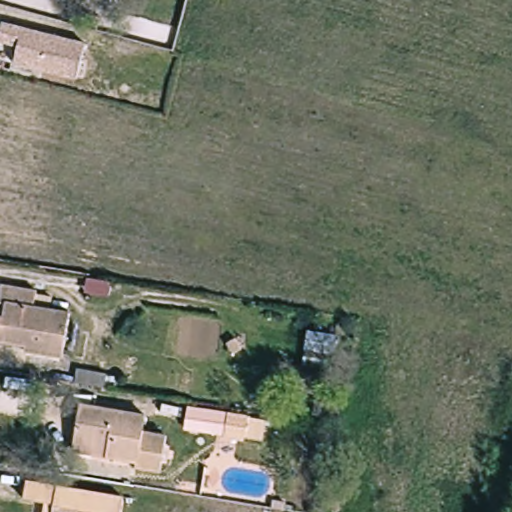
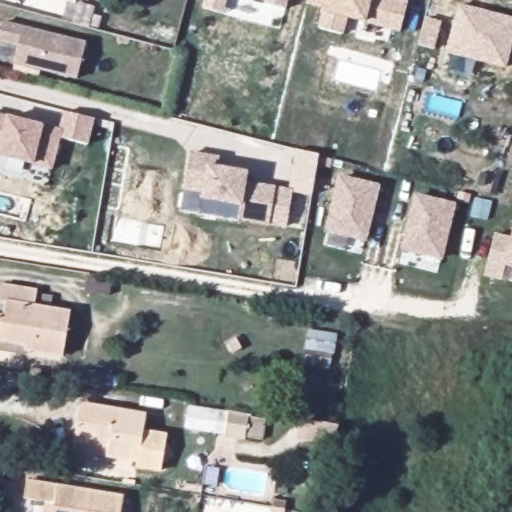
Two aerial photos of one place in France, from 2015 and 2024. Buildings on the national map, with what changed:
new [(222,14),(202,8),(205,0),(227,0),(222,14)]
new [(265,4),(266,0),(289,0),(287,9),(265,4)]
new [(365,23),(346,19),(343,34),(318,27),(322,13),(323,9),(306,4),(307,0),(402,0),(408,1),(400,33),(365,23)]
new [(512,17),(512,51),(508,68),(446,53),(460,3),(512,17)]
unchanged [(95,57),(87,92),(22,77),(27,59),(6,55),(10,37),(95,57)]
new [(64,110),(92,116),(87,141),(60,135),(52,166),(0,153),(2,146),(0,146),(0,114),(60,128),(64,110)]
new [(218,167),(248,173),(247,182),(276,187),(292,189),(285,229),(269,226),(237,221),(240,207),(200,200),(201,193),(183,191),(190,151),(220,157),(218,167)]
new [(338,173),(377,184),(364,237),(325,226),(338,173)]
new [(411,193),(452,204),(441,257),(399,247),(411,193)]
new [(493,232),(508,236),(512,225),(512,265),(503,262),(500,276),(482,272),(493,232)]
unchanged [(37,305),(75,312),(68,355),(29,348),(30,342),(0,337),(0,316),(2,316),(5,300),(0,299),(0,283),(0,279),(40,286),(37,305)]
unchanged [(78,433),(85,398),(150,411),(147,428),(168,434),(160,470),(133,465),(133,460),(107,454),(75,448),(78,433)]
new [(265,421),(262,439),(243,437),(243,440),(183,428),(188,405),(247,415),(265,421)]
demolished [(208,406),(259,417),(255,436),(205,426),(208,406)]
unchanged [(25,497),(28,483),(127,502),(125,512),(45,512),(47,502),(25,497)]
new [(282,512),(270,512),(270,507),(282,510),(282,512)]

